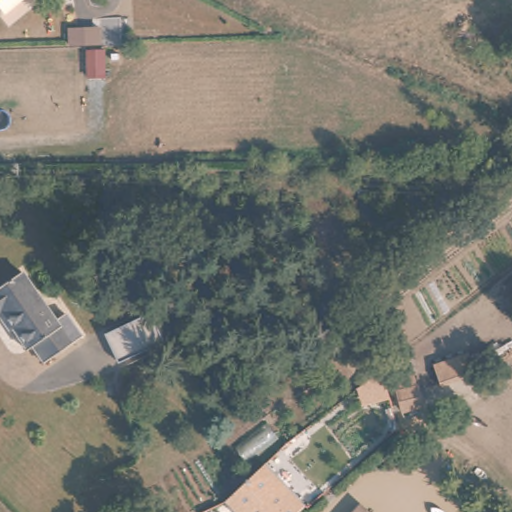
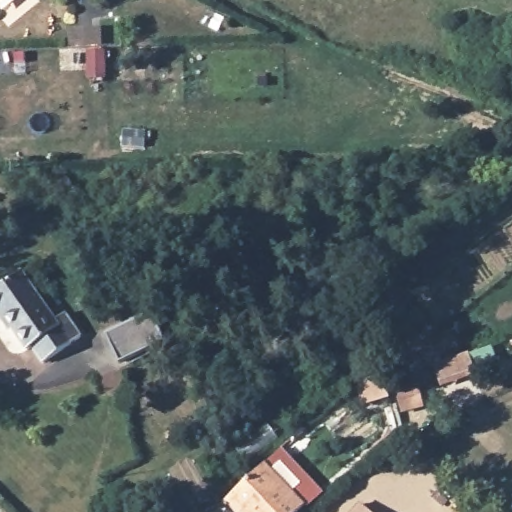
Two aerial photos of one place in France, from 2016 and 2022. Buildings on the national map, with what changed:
unchanged [(0,0),(6,0),(0,5),(0,0)]
unchanged [(61,319),(68,314),(86,338),(77,344),(45,364),(36,351),(31,354),(29,351),(2,314),(0,315),(0,287),(15,277),(26,271),(61,319)]
unchanged [(152,311),(168,339),(124,362),(107,334),(152,311)]
unchanged [(470,353),(477,377),(440,389),(432,367),(470,353)]
unchanged [(423,412),(401,416),(392,382),(413,377),(423,412)]
unchanged [(287,486),(303,500),(291,512),(230,512),(228,510),(231,508),(259,483),(272,471),(287,486)]
unchanged [(364,512),(355,512),(360,508),(364,512)]

